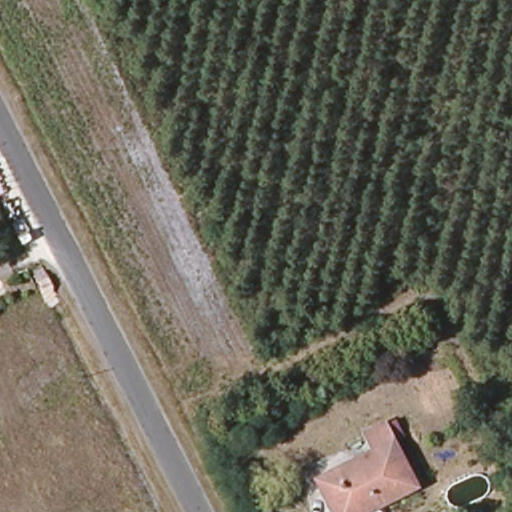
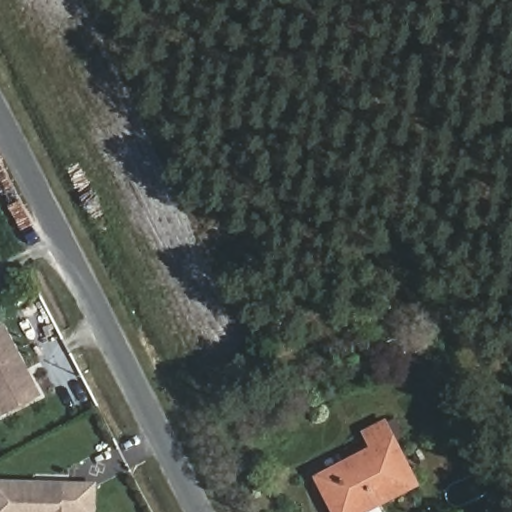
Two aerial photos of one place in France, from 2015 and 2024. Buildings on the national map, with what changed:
new [(1,419),(0,417),(0,326),(6,323),(43,396),(1,419)]
unchanged [(327,476),(370,451),(363,431),(388,421),(417,487),(365,512),(342,512),(327,476)]
new [(97,483),(97,512),(0,512),(0,480),(97,483)]
demolished [(109,489),(120,512),(56,512),(109,489)]

